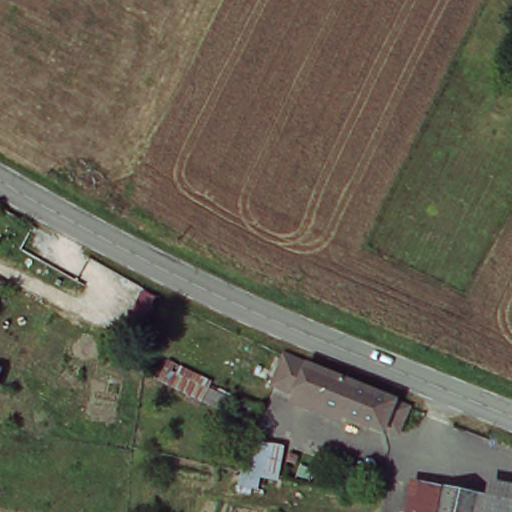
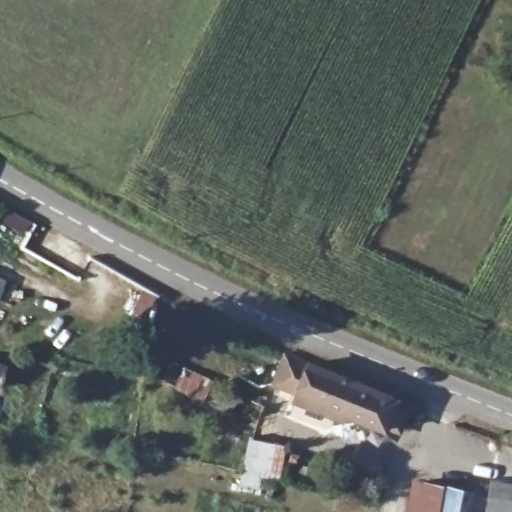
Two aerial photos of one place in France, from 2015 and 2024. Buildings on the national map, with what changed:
unchanged [(384,425),(271,380),(283,351),(321,369),(396,398),(409,403),(399,431),(384,425)]
unchanged [(210,382),(202,400),(161,380),(169,362),(210,382)]
unchanged [(251,442),(281,454),(275,468),(269,484),(238,472),(241,465),(251,442)]
unchanged [(474,472),(512,480),(512,507),(469,498),(474,472)]
unchanged [(420,494),(447,498),(448,494),(469,498),(512,507),(512,512),(417,512),(420,494)]

